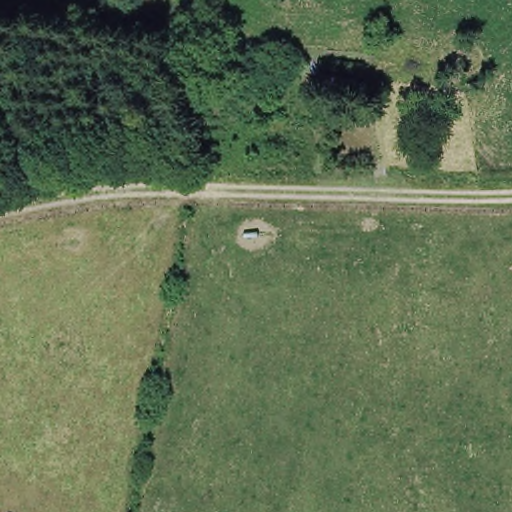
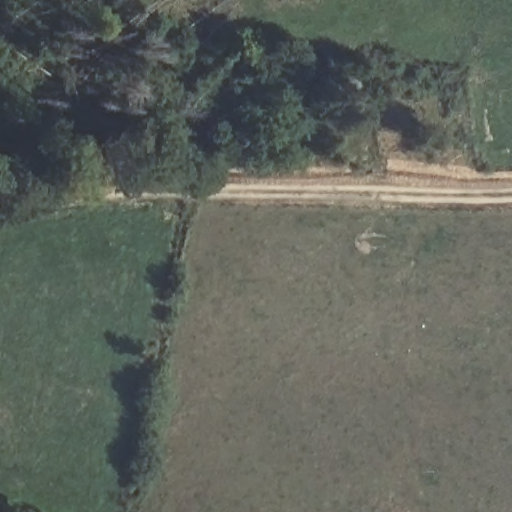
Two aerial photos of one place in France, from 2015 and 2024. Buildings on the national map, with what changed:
unchanged [(326,123),(327,98),(377,99),(371,124),(326,123)]

